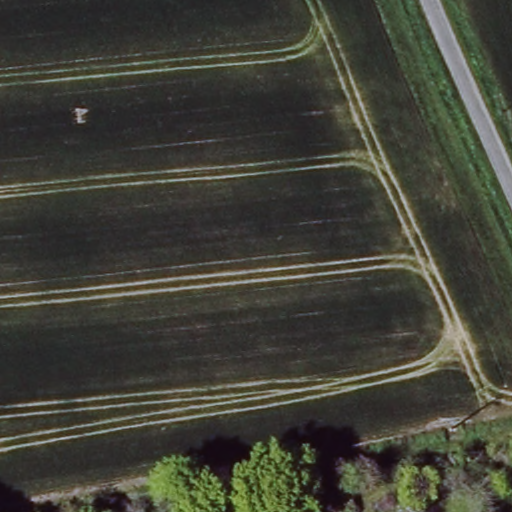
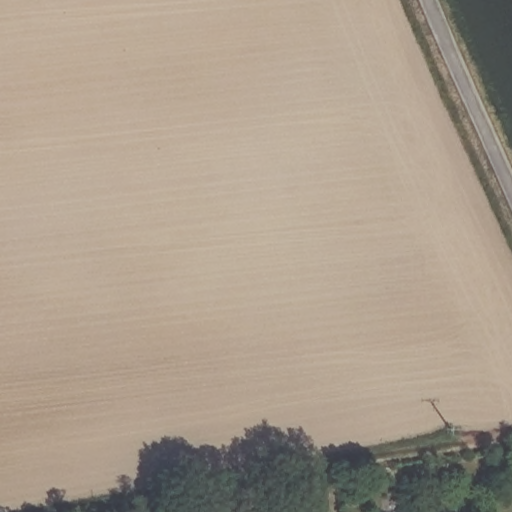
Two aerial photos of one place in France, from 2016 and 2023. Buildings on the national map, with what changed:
[]

